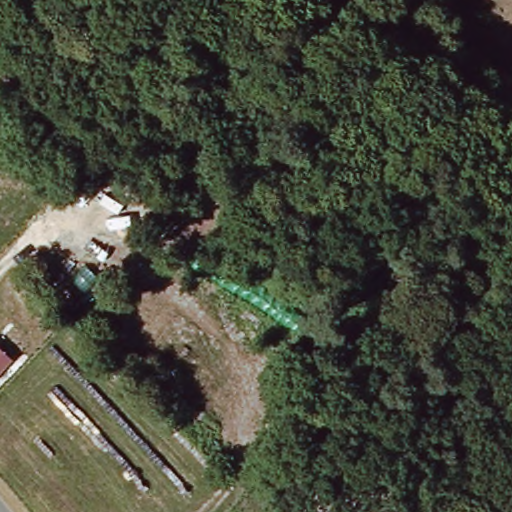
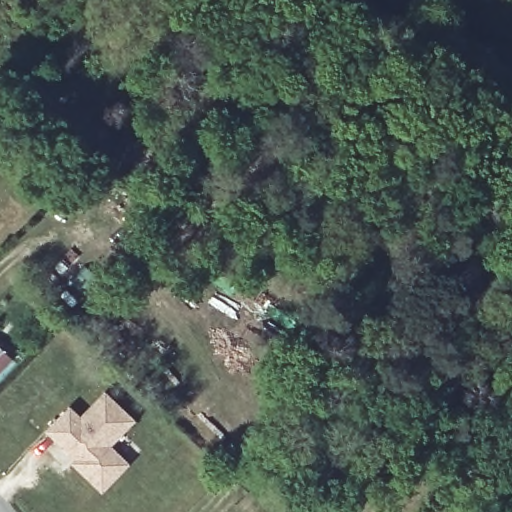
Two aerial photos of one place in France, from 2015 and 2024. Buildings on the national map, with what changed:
new [(11,360),(0,371),(0,350),(11,360)]
new [(132,419),(122,431),(140,451),(102,491),(72,461),(75,458),(46,430),(67,408),(79,420),(105,393),(132,419)]

